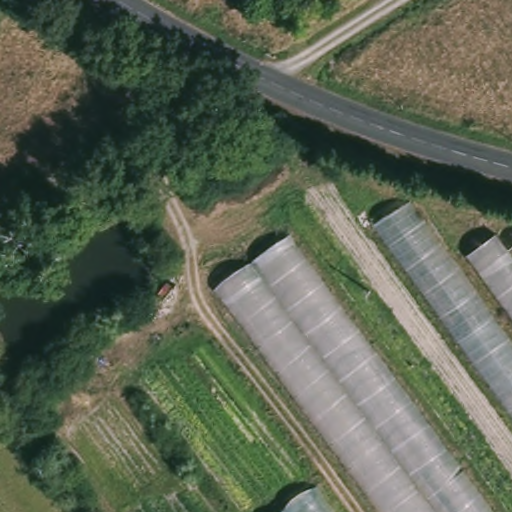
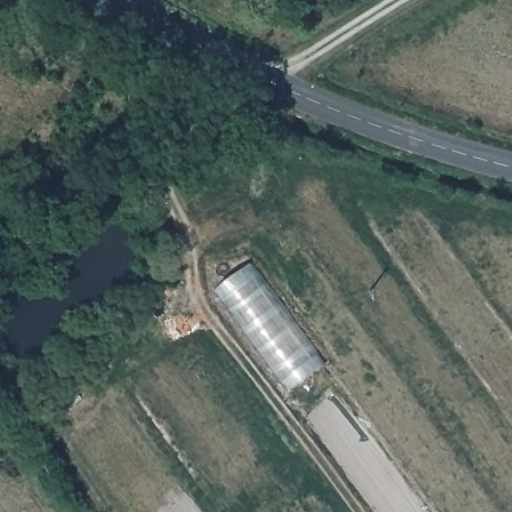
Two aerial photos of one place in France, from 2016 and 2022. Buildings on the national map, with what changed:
demolished [(512,425),(369,229),(411,206),(512,344),(512,425)]
demolished [(501,233),(512,247),(512,313),(469,253),(501,233)]
demolished [(491,512),(371,512),(209,294),(286,238),(491,512)]

